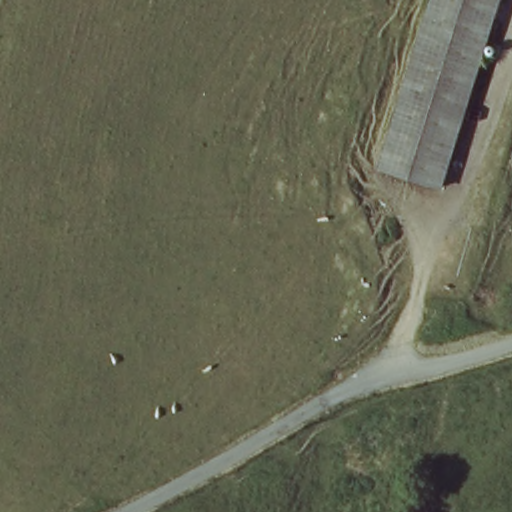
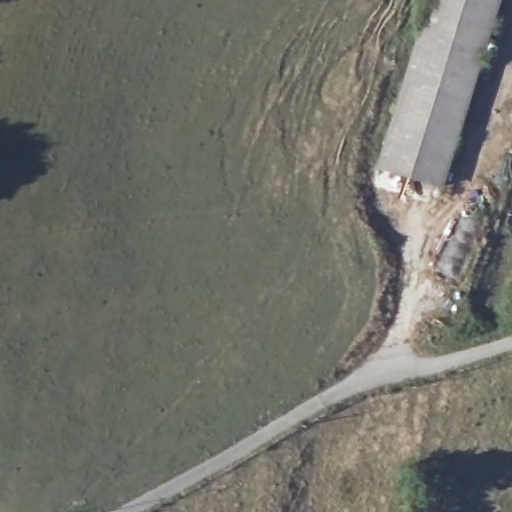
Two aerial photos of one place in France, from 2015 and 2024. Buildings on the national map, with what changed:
unchanged [(400,172),(370,161),(430,0),(503,0),(433,183),(400,172)]

